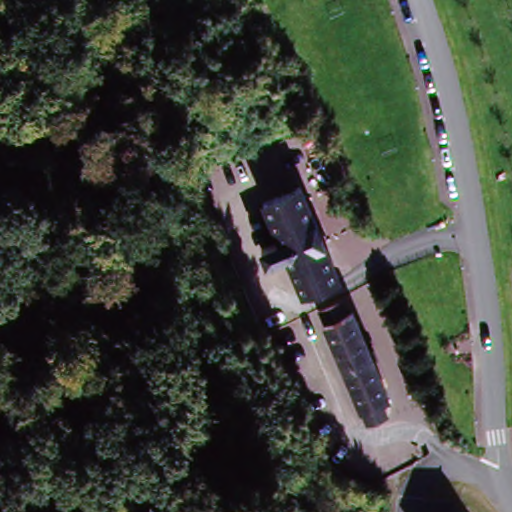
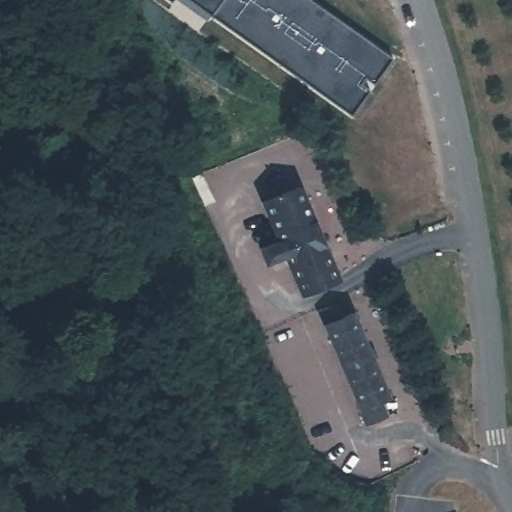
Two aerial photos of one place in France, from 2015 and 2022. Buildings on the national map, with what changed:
new [(393,57),(375,82),(365,75),(360,83),(370,89),(350,117),(188,0),(313,0),(393,57)]
unchanged [(264,252),(282,245),(265,204),(302,189),(341,282),(305,297),(288,258),(270,266),(264,252)]
unchanged [(386,396),(377,401),(384,416),(365,425),(322,326),(317,314),(338,305),(344,317),(351,314),(386,396)]

